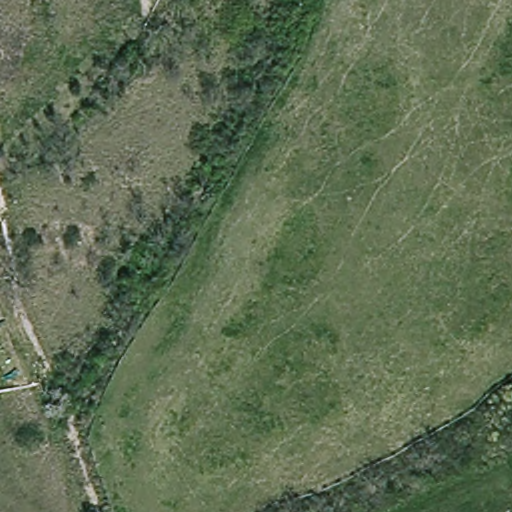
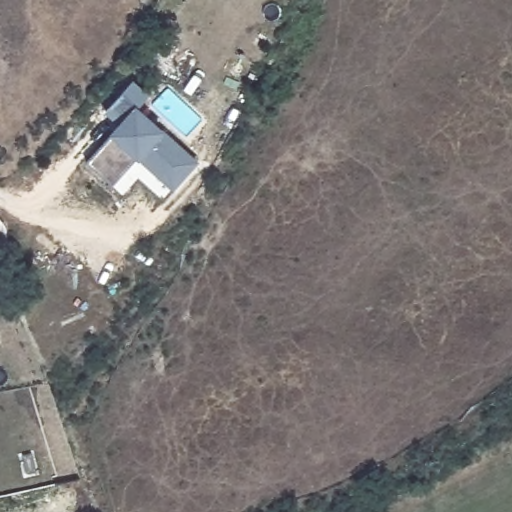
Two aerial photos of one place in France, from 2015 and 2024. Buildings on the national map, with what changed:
new [(119,122),(106,110),(131,81),(148,94),(137,105),(165,130),(200,161),(173,191),(140,159),(138,160),(135,158),(113,185),(87,161),(109,133),(119,122)]

